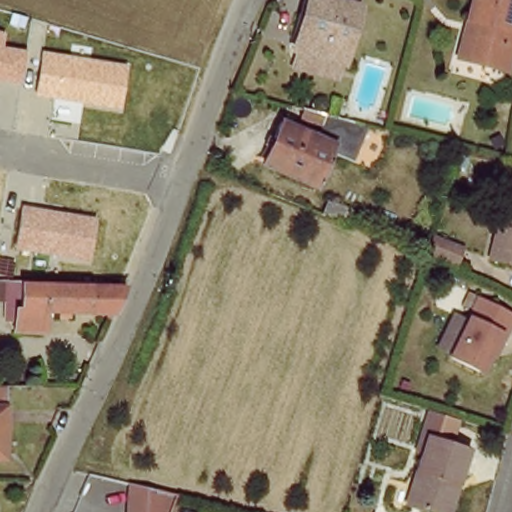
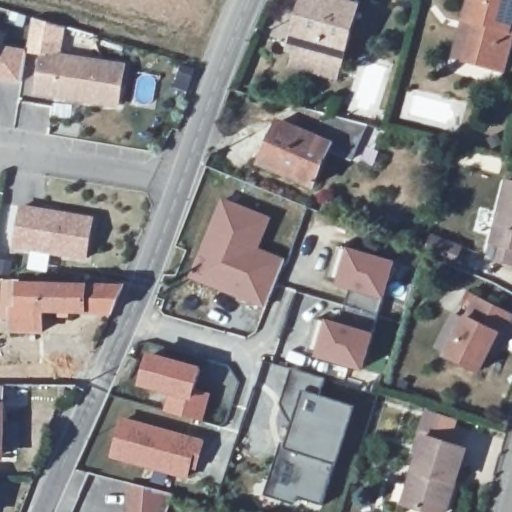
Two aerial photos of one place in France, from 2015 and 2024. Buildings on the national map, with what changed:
unchanged [(297,52),(307,15),(300,12),(303,0),(336,0),(359,6),(342,65),(297,52)]
unchanged [(472,20),(477,0),(512,0),(512,62),(510,71),(469,60),(462,58),(472,20)]
unchanged [(3,47),(27,51),(22,84),(0,80),(0,34),(4,35),(3,47)]
unchanged [(122,110),(35,97),(42,51),(128,65),(122,110)]
unchanged [(343,175),(321,165),(305,202),(253,180),(271,137),(286,144),(295,124),(300,125),(358,140),(343,175)]
unchanged [(490,259),(507,182),(512,183),(512,264),(490,259)]
new [(271,219),(261,249),(285,257),(266,310),(189,280),(221,198),(271,219)]
unchanged [(348,224),(339,220),(323,214),(328,202),(353,212),(348,224)]
unchanged [(98,220),(88,262),(13,250),(21,205),(98,220)]
unchanged [(455,265),(427,254),(434,237),(462,248),(455,265)]
new [(395,260),(364,371),(313,356),(325,318),(344,323),(353,290),(335,283),(346,246),(395,260)]
unchanged [(119,307),(56,306),(55,328),(24,326),(24,315),(14,315),(15,295),(17,274),(31,275),(31,280),(134,283),(124,307),(121,314),(117,312),(119,307)]
unchanged [(500,352),(490,371),(459,357),(460,355),(447,350),(465,313),(477,320),(487,298),(512,311),(512,339),(505,355),(500,352)]
new [(201,365),(195,390),(211,395),(204,421),(165,411),(169,393),(137,385),(147,351),(201,365)]
new [(326,377),(322,395),(354,405),(324,505),(298,498),(297,505),(267,495),(281,445),(287,447),(294,423),(281,402),(291,368),(326,377)]
unchanged [(0,459),(0,385),(10,385),(9,459),(0,459)]
new [(206,440),(198,473),(191,472),(190,480),(110,458),(122,416),(206,440)]
unchanged [(447,512),(431,512),(409,505),(426,453),(420,451),(430,420),(462,431),(457,445),(472,450),(460,484),(457,482),(447,512)]
unchanged [(165,492),(176,495),(169,512),(129,512),(131,483),(165,492)]

